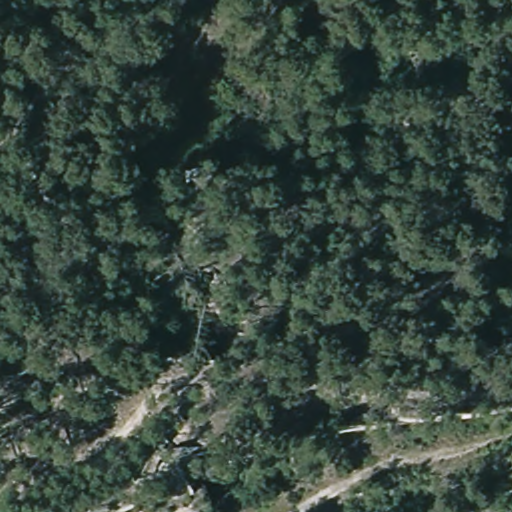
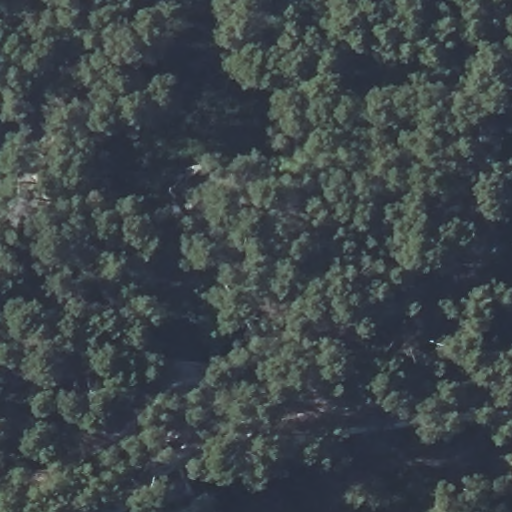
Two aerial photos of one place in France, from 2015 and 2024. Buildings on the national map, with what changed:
unchanged [(218,173),(218,198),(180,198),(181,174),(218,173)]

